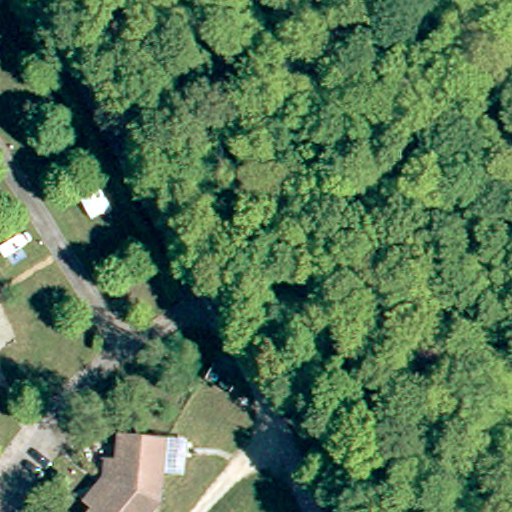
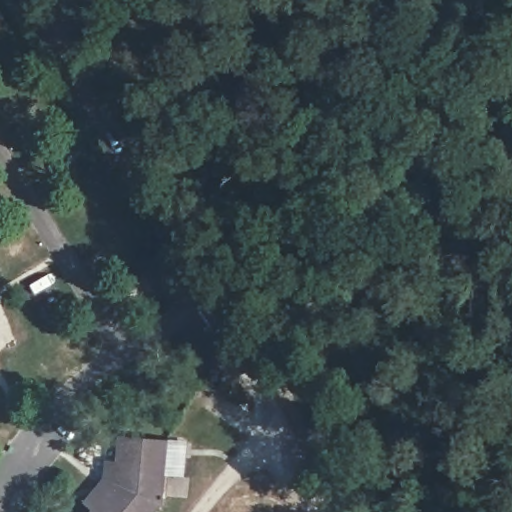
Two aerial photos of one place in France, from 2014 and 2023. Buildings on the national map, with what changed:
unchanged [(175,441),(167,501),(157,512),(96,512),(98,509),(91,502),(101,491),(110,480),(116,460),(125,460),(130,434),(175,441)]

